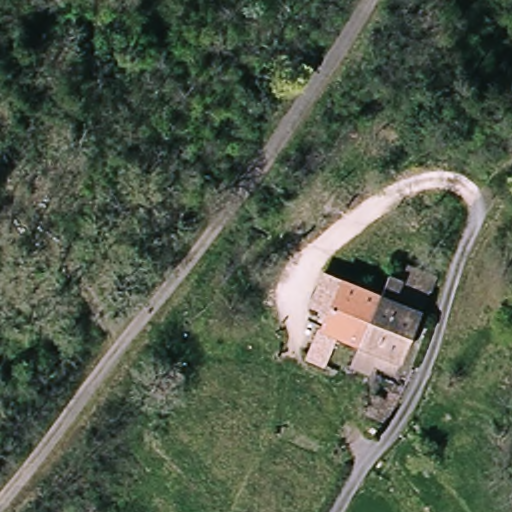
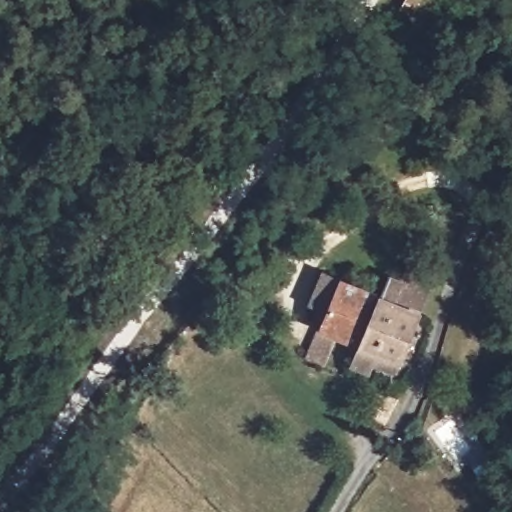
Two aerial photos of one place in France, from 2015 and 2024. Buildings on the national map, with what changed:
unchanged [(374,292),(380,295),(390,273),(405,279),(415,258),(442,271),(398,360),(353,342),(374,292)]
unchanged [(340,336),(323,368),(302,358),(326,308),(310,300),(325,271),(374,292),(353,342),(340,336)]
unchanged [(370,365),(365,375),(343,366),(353,342),(398,360),(390,375),(370,365)]

